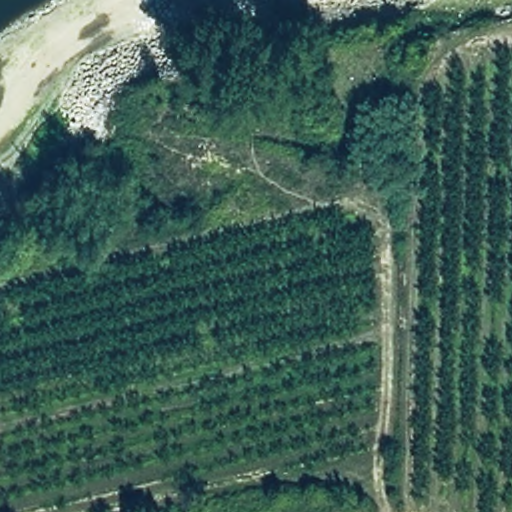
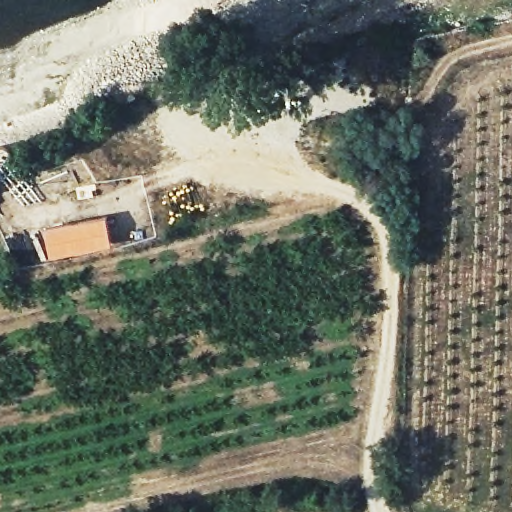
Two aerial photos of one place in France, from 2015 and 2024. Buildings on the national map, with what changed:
demolished [(198,109),(196,126),(176,124),(178,104),(198,109)]
new [(111,245),(50,257),(44,228),(105,217),(111,245)]

